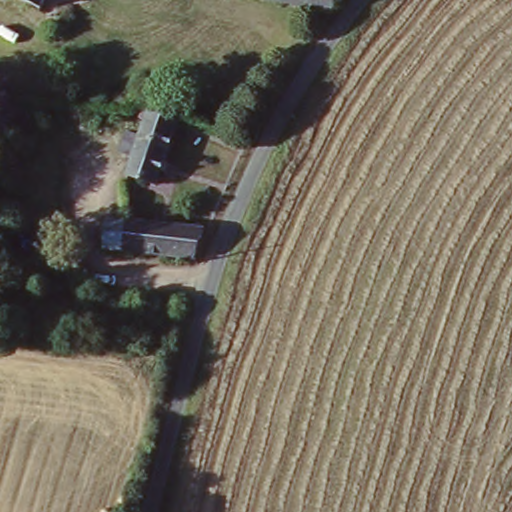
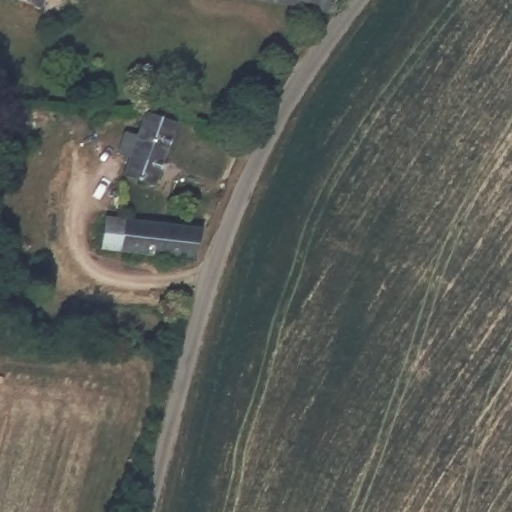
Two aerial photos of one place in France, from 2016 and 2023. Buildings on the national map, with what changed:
unchanged [(336,4),(306,0),(336,0),(336,4)]
unchanged [(144,122),(139,120),(141,113),(151,111),(181,120),(161,181),(128,173),(144,122)]
unchanged [(205,228),(199,258),(105,236),(101,207),(205,228)]

